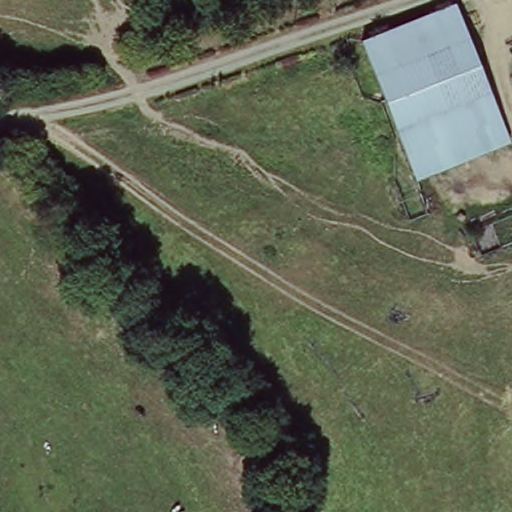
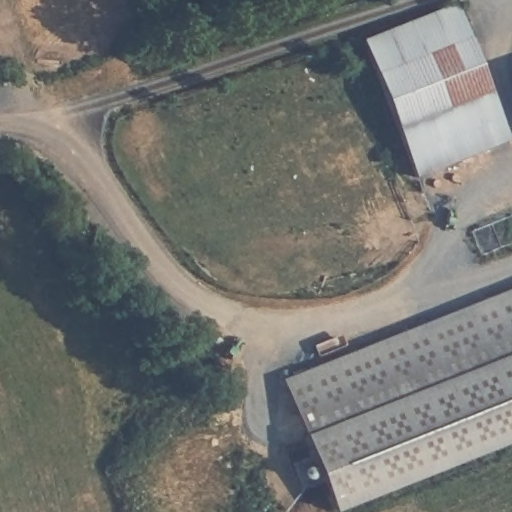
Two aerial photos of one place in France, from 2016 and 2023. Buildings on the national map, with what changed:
unchanged [(362,39),(459,5),(493,111),(504,146),(461,161),(408,179),(398,149),(362,39)]
unchanged [(512,68),(512,86),(506,71),(512,68)]
new [(429,333),(500,309),(497,302),(512,297),(512,445),(330,507),(284,374),(427,326),(429,333)]

